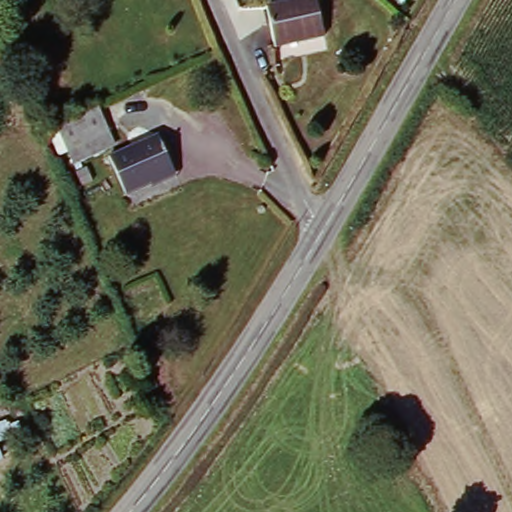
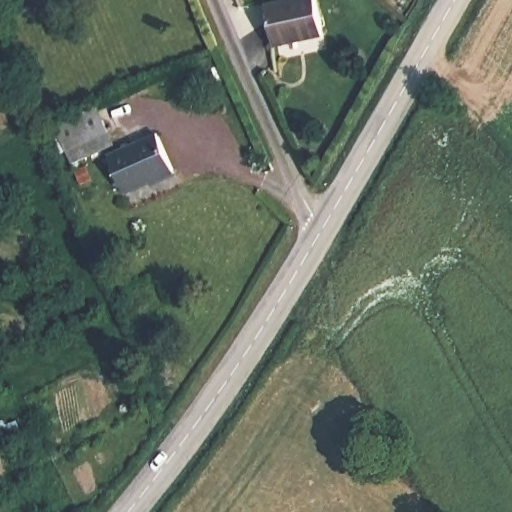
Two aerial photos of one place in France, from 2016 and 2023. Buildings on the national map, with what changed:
unchanged [(316,2),(323,39),(277,49),(269,11),(316,2)]
unchanged [(96,157),(91,145),(73,153),(61,128),(103,109),(114,134),(120,146),(96,157)]
unchanged [(160,190),(156,183),(131,195),(114,157),(163,134),(180,171),(184,179),(160,190)]
unchanged [(0,469),(0,444),(9,464),(0,469)]

